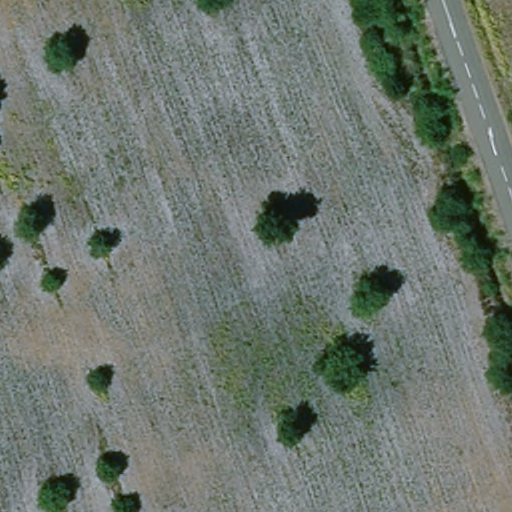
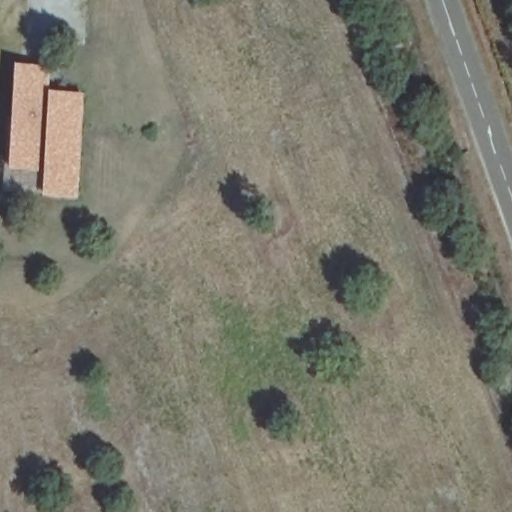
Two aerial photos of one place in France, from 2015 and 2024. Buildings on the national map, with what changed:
new [(45,198),(46,171),(10,169),(17,64),(50,67),(50,90),(85,94),(80,199),(45,198)]

